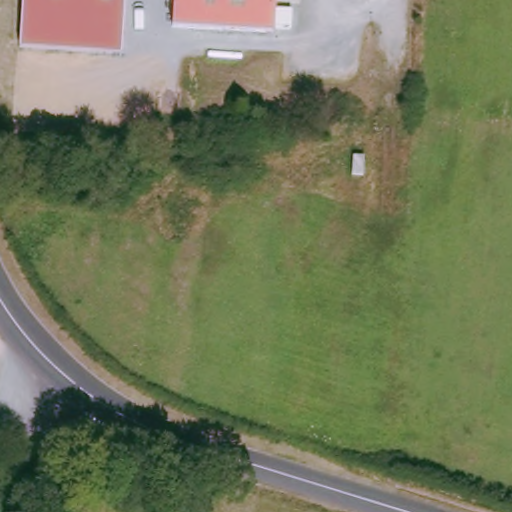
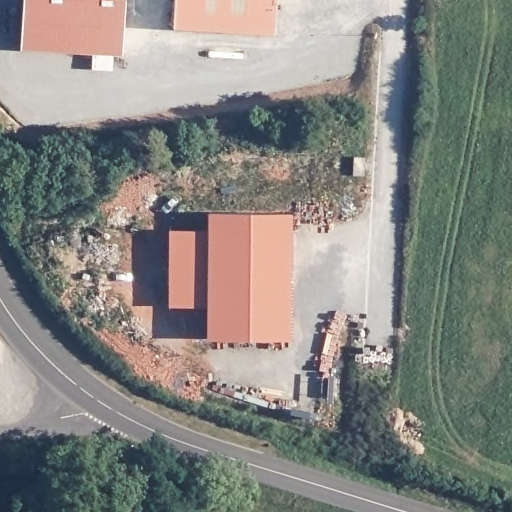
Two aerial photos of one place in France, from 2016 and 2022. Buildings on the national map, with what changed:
unchanged [(20,48),(22,0),(124,0),(120,54),(20,48)]
unchanged [(172,28),(173,0),(275,0),(273,34),(172,28)]
new [(353,156),(365,156),(364,174),(353,174),(353,156)]
new [(208,213),(292,213),(291,339),(207,339),(208,213)]

